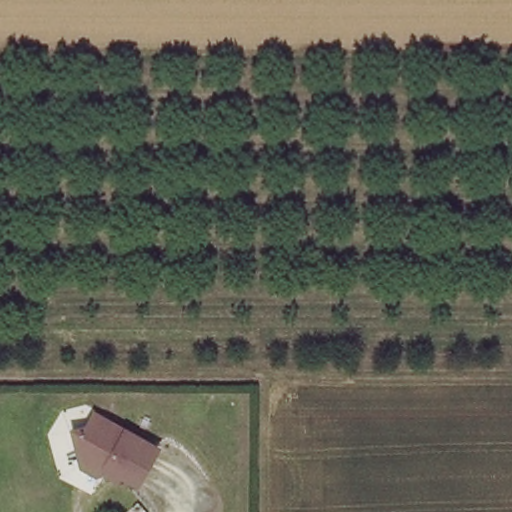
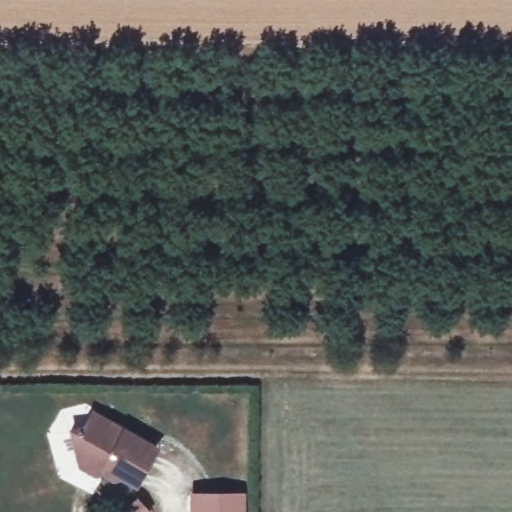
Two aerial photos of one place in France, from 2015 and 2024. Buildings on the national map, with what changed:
unchanged [(154,450),(132,488),(86,463),(75,468),(69,434),(82,430),(92,415),(154,450)]
new [(190,494),(244,493),(244,512),(190,512),(190,494)]

